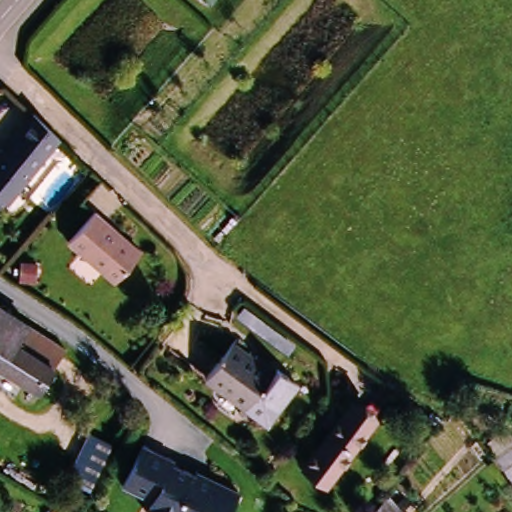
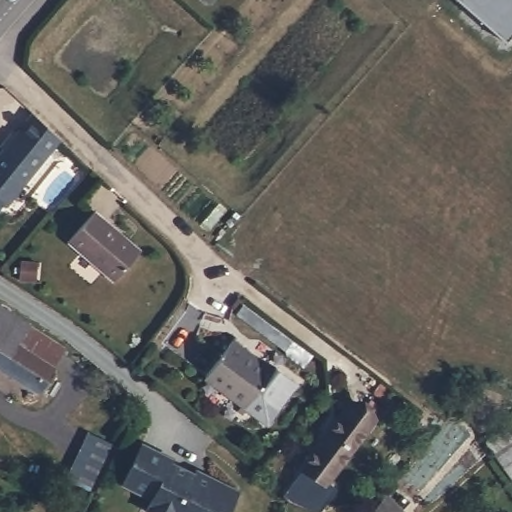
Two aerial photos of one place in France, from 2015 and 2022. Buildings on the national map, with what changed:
new [(512,34),(507,41),(460,0),(512,0),(512,34)]
unchanged [(5,144),(2,141),(12,129),(43,155),(6,199),(5,197),(0,202),(0,150),(5,144)]
unchanged [(95,211),(141,252),(115,281),(69,241),(95,211)]
unchanged [(65,347),(37,390),(0,366),(0,306),(65,347)]
unchanged [(215,398),(221,392),(185,365),(211,330),(251,360),(255,355),(275,370),(245,410),(225,395),(220,402),(215,398)]
unchanged [(354,397),(377,416),(328,481),(305,463),(354,397)]
unchanged [(112,443),(91,490),(67,478),(87,432),(112,443)]
unchanged [(170,461),(207,480),(209,476),(237,490),(226,512),(150,512),(145,510),(150,497),(122,483),(142,442),(172,457),(170,461)]
unchanged [(512,445),(512,482),(492,454),(512,445)]
unchanged [(370,512),(385,495),(392,503),(386,512),(370,512)]
unchanged [(399,512),(389,512),(394,506),(399,512)]

